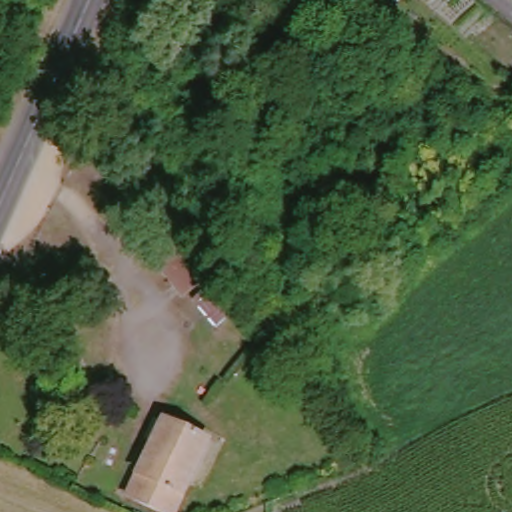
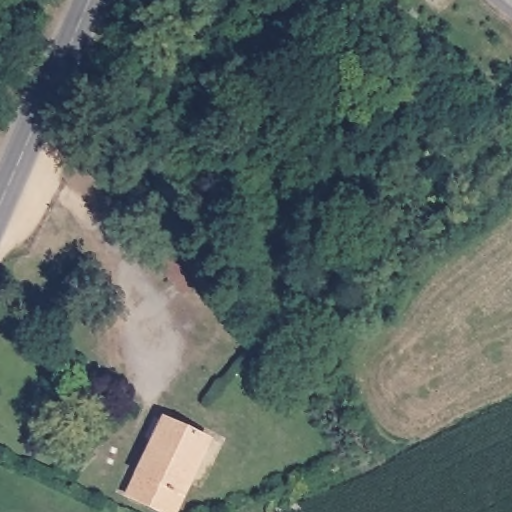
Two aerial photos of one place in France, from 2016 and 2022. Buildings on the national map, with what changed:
unchanged [(208,277),(185,296),(159,266),(182,246),(208,277)]
unchanged [(92,280),(72,298),(59,284),(80,266),(92,280)]
unchanged [(161,512),(127,495),(163,419),(208,441),(174,512),(161,512)]

